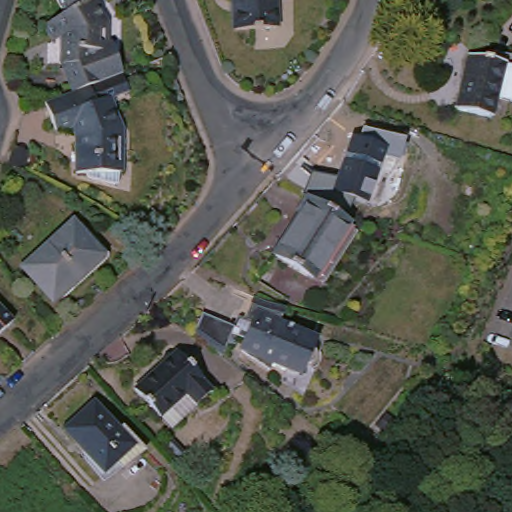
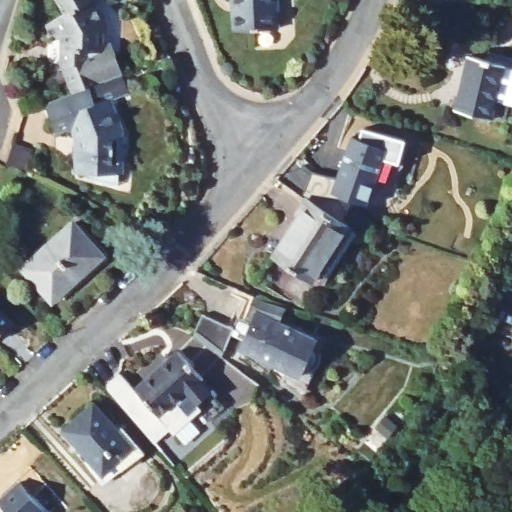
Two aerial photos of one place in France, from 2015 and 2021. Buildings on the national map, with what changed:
unchanged [(70,92),(60,66),(59,36),(49,41),(39,26),(61,13),(53,0),(90,0),(103,24),(103,48),(110,48),(120,73),(119,73),(88,85),(70,92)]
unchanged [(276,27),(233,29),(231,0),(274,0),(276,27)]
unchanged [(512,67),(512,104),(496,101),(493,118),(456,110),(469,56),(512,67)]
unchanged [(90,177),(90,173),(79,173),(78,141),(83,141),(82,134),(77,128),(55,130),(45,102),(70,92),(88,85),(119,73),(126,92),(110,98),(124,132),(124,173),(124,187),(90,177)]
unchanged [(399,162),(383,157),(368,204),(333,194),(330,201),(304,190),(310,174),(336,179),(351,134),(359,137),(362,128),(403,139),(399,162)]
unchanged [(349,225),(313,281),(275,256),(301,215),(297,212),(307,198),(349,225)]
unchanged [(151,219),(159,225),(148,238),(140,232),(151,219)]
unchanged [(73,225),(102,258),(51,302),(23,269),(73,225)]
unchanged [(274,306),(289,310),(291,311),(285,325),(319,341),(317,350),(321,358),(321,365),(315,370),(308,371),(304,380),(276,368),(272,375),(243,355),(256,325),(245,321),(256,298),(274,306)]
unchanged [(0,334),(0,308),(13,321),(0,334)]
unchanged [(206,315),(237,329),(223,360),(194,339),(206,315)]
unchanged [(208,384),(206,386),(216,397),(203,411),(193,400),(166,423),(141,396),(183,357),(208,384)]
unchanged [(134,448),(104,476),(63,432),(94,404),(134,448)]
new [(44,512),(0,512),(0,503),(19,485),(44,512)]

